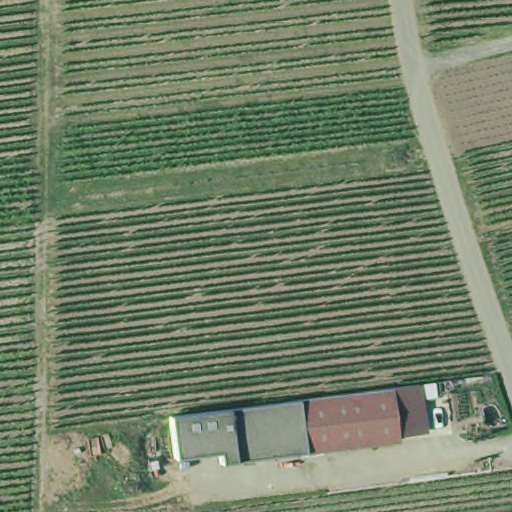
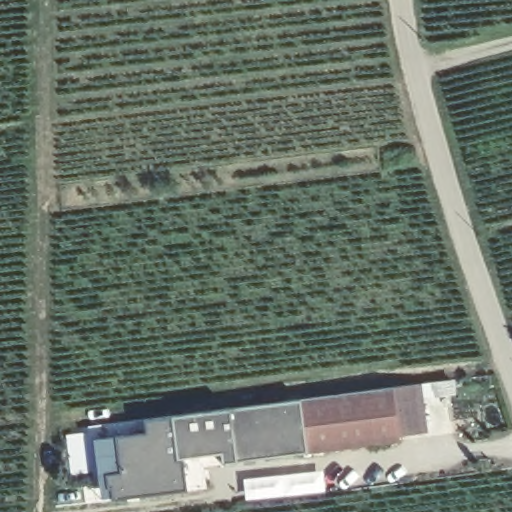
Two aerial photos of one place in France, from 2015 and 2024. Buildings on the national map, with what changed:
unchanged [(305,450),(297,397),(419,377),(426,430),(305,454),(305,450)]
unchanged [(305,450),(220,463),(217,450),(177,456),(172,418),(297,397),(305,450)]
new [(177,456),(182,494),(99,502),(91,443),(144,437),(142,424),(172,418),(177,456)]

